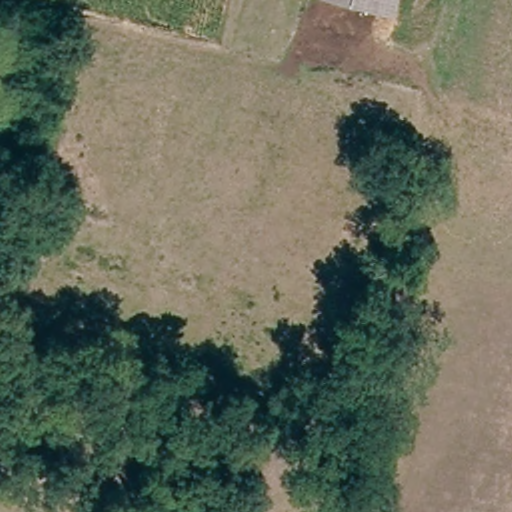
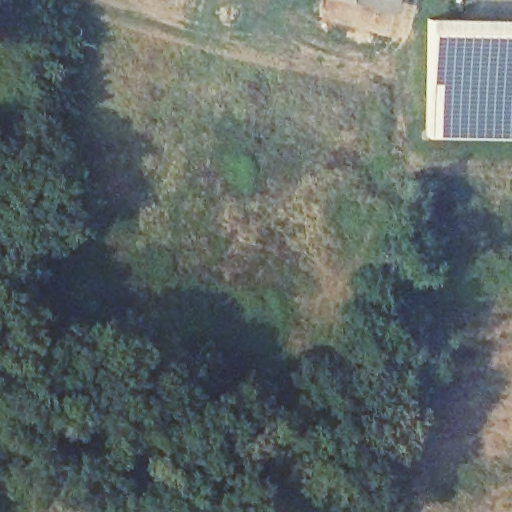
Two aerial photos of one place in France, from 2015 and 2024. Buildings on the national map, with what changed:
unchanged [(339,1),(339,0),(397,0),(393,14),(339,1)]
new [(427,137),(427,16),(512,18),(512,139),(427,137)]

